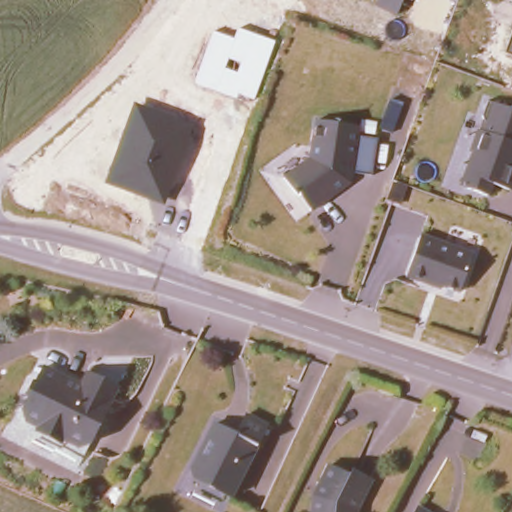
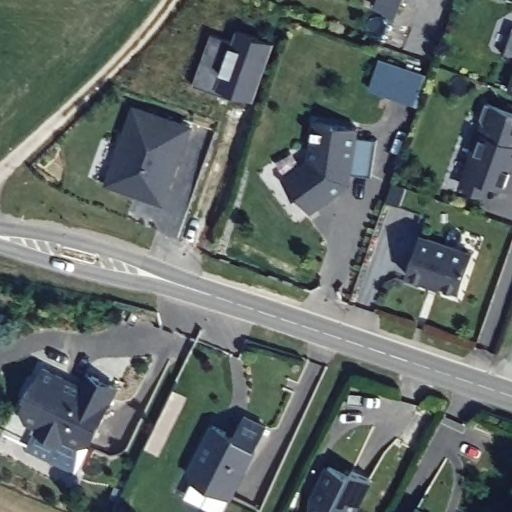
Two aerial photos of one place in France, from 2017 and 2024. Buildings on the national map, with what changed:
unchanged [(396,16),(374,7),(377,0),(404,0),(396,16)]
unchanged [(234,40),(238,30),(276,42),(253,102),(196,84),(213,33),(234,40)]
unchanged [(512,34),(512,56),(505,54),(512,34)]
new [(370,85),(380,57),(429,74),(419,102),(370,85)]
unchanged [(512,82),(512,91),(509,90),(512,82)]
unchanged [(105,184),(133,103),(192,123),(165,205),(105,184)]
unchanged [(490,198),(457,188),(490,105),(512,110),(512,191),(495,186),(490,198)]
unchanged [(370,176),(351,173),(346,186),(313,212),(283,174),(310,159),(314,122),(357,127),(357,136),(375,139),(370,176)]
unchanged [(475,250),(458,294),(440,286),(440,291),(404,280),(422,232),(475,250)]
unchanged [(21,415),(45,363),(85,381),(93,368),(116,379),(108,399),(112,400),(90,445),(21,415)]
unchanged [(217,420),(238,432),(245,413),(268,426),(235,495),(187,472),(217,420)]
unchanged [(328,460),(374,473),(359,512),(305,512),(305,504),(328,460)]
unchanged [(425,512),(413,512),(415,508),(425,512)]

